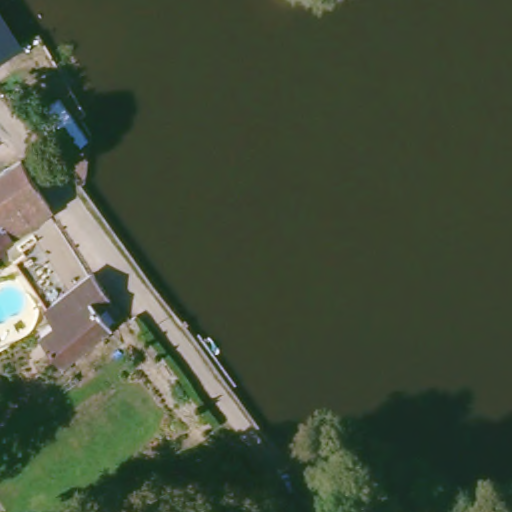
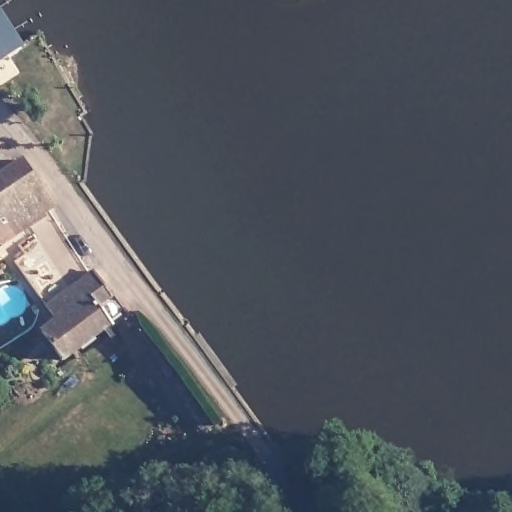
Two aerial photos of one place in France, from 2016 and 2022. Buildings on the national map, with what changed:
unchanged [(15,51),(0,61),(0,27),(15,51)]
unchanged [(38,215),(40,221),(0,247),(0,174),(25,158),(56,205),(38,215)]
unchanged [(76,291),(94,279),(103,293),(90,301),(111,331),(65,361),(46,331),(58,323),(50,309),(76,291)]

